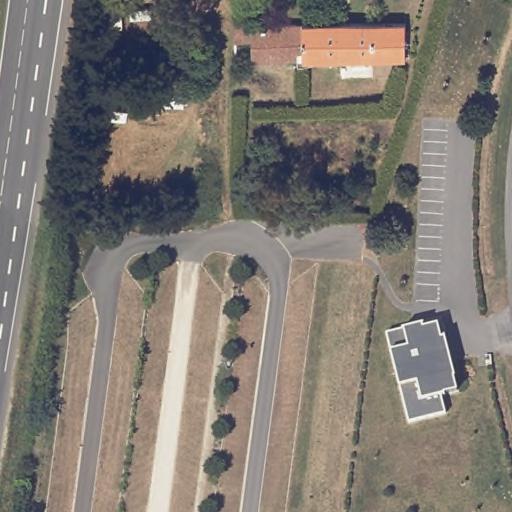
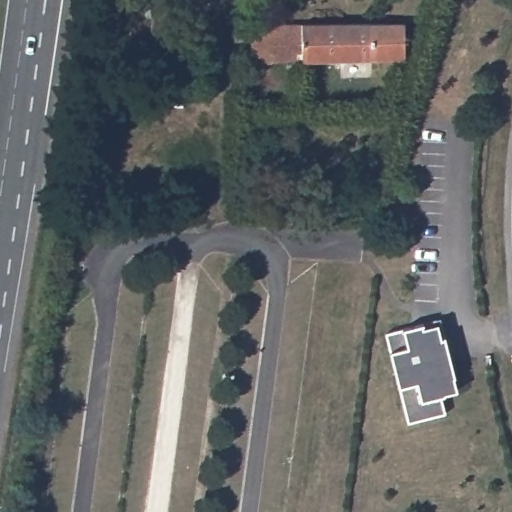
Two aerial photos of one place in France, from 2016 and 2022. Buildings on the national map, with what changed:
unchanged [(231,23),(253,23),(255,19),(259,16),(263,15),(267,16),(271,18),(273,21),(274,24),(403,24),(403,58),(249,64),(248,42),(232,42),(231,23)]
unchanged [(184,108),(143,105),(144,89),(185,93),(184,108)]
unchanged [(439,319),(457,391),(440,395),(442,412),(407,422),(385,334),(439,319)]

